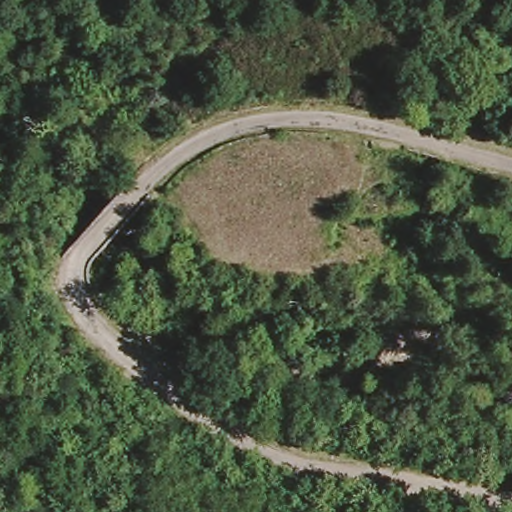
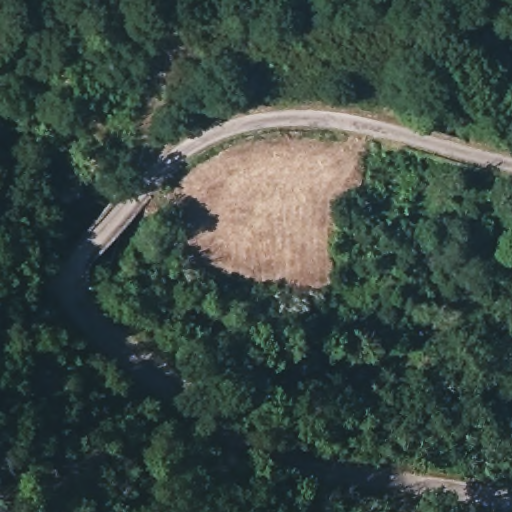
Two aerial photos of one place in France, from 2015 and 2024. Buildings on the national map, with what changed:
[]

